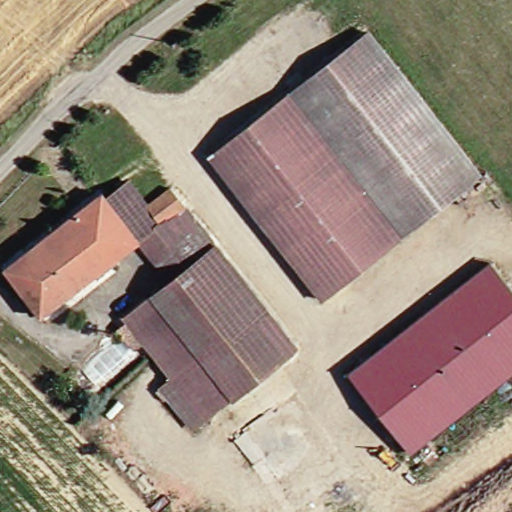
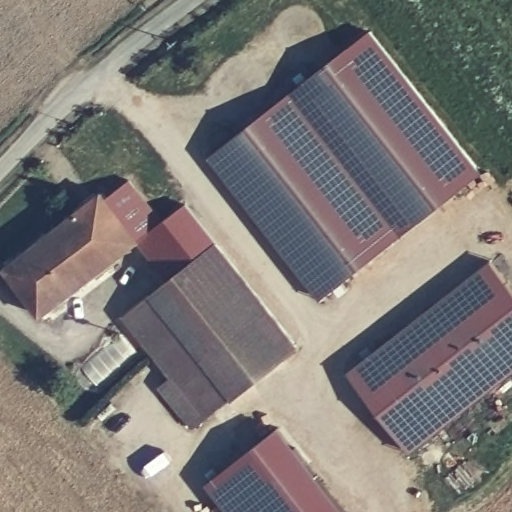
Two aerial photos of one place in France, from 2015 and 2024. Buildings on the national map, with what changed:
unchanged [(475,166),(319,294),(205,155),(363,29),(475,166)]
unchanged [(129,324),(125,314),(160,286),(152,274),(167,260),(155,246),(145,233),(142,231),(42,314),(4,266),(97,189),(103,194),(122,179),(146,203),(167,186),(297,342),(194,427),(130,351),(134,347),(121,332),(129,324)]
unchanged [(490,263),(512,290),(512,374),(413,454),(375,407),(348,376),(490,263)]
new [(230,512),(207,481),(276,426),(341,512),(230,512)]

